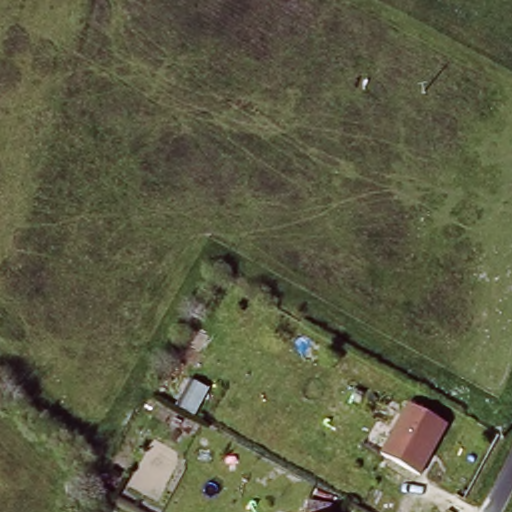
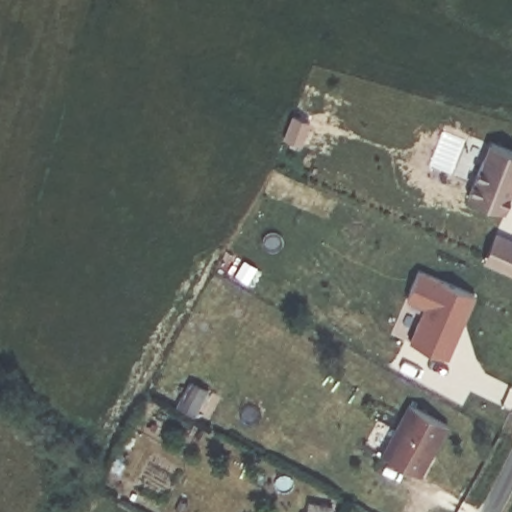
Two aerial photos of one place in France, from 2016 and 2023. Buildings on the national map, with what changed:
new [(295,111),(311,118),(302,141),(286,135),(295,111)]
new [(468,199),(489,141),(512,151),(512,198),(506,214),(468,199)]
new [(495,234),(512,241),(512,275),(482,262),(495,234)]
new [(411,341),(425,308),(405,301),(420,270),(477,294),(450,360),(411,341)]
unchanged [(441,429),(415,476),(378,453),(400,407),(441,429)]

